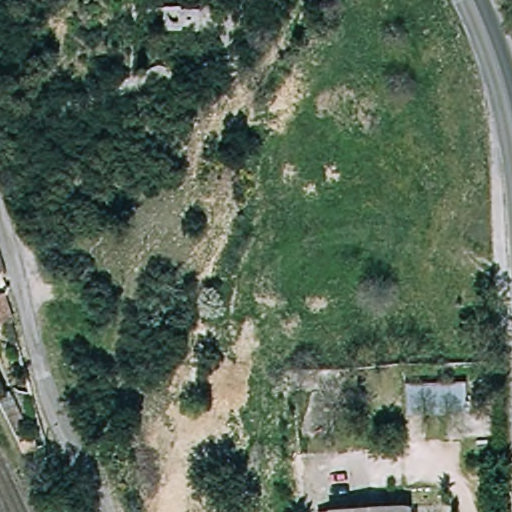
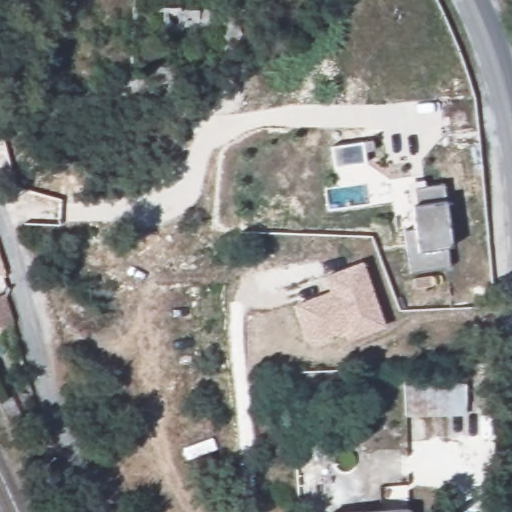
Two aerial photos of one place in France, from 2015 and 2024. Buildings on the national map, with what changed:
new [(417,227),(410,185),(440,180),(451,245),(447,245),(450,265),(411,272),(404,229),(417,227)]
new [(304,324),(297,303),(326,292),(333,290),(328,274),(363,261),(385,324),(349,337),(345,325),(323,333),(309,338),(304,324)]
unchanged [(0,274),(0,270),(1,274),(0,274)]
unchanged [(6,311),(9,323),(0,326),(0,295),(1,294),(6,311)]
unchanged [(421,385),(459,384),(460,415),(422,416),(421,385)]
unchanged [(1,393),(13,387),(31,423),(18,429),(1,393)]
unchanged [(405,512),(321,512),(404,505),(405,512)]

